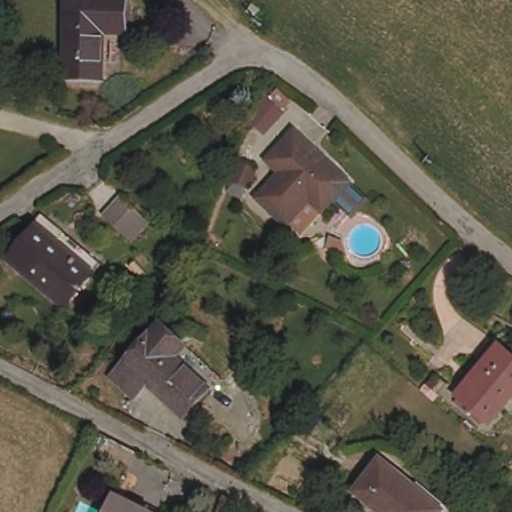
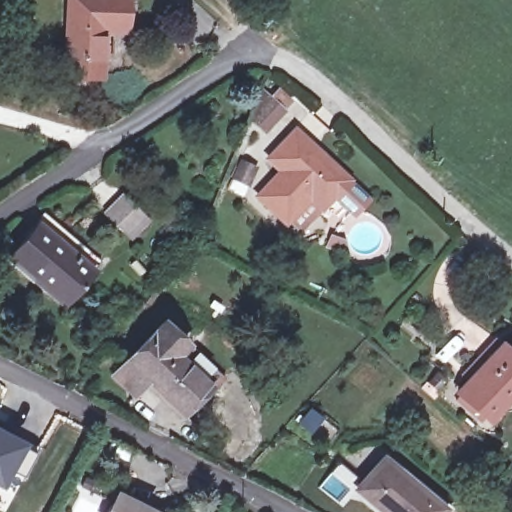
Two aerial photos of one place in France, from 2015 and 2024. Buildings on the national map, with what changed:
unchanged [(125,27),(100,26),(100,80),(65,79),(66,0),(124,0),(125,27)]
unchanged [(262,78),(285,99),(266,123),(249,107),(248,107),(262,78)]
unchanged [(339,178),(312,209),(302,198),(282,224),(255,197),(277,172),(265,161),(289,133),(339,178)]
unchanged [(235,160),(247,166),(239,186),(227,180),(235,160)]
unchanged [(120,187),(141,209),(122,233),(101,210),(120,187)]
unchanged [(44,212),(97,266),(64,310),(8,262),(44,212)]
unchanged [(155,328),(214,384),(201,398),(195,393),(170,419),(136,387),(122,401),(105,384),(155,328)]
unchanged [(512,400),(495,419),(487,413),(477,421),(458,399),(480,376),(472,366),(499,340),(512,354),(512,400)]
new [(27,444),(24,451),(35,457),(22,479),(12,474),(4,491),(0,490),(0,430),(27,444)]
unchanged [(433,512),(385,512),(360,492),(384,462),(437,507),(433,512)]
unchanged [(151,512),(106,512),(115,493),(151,512)]

